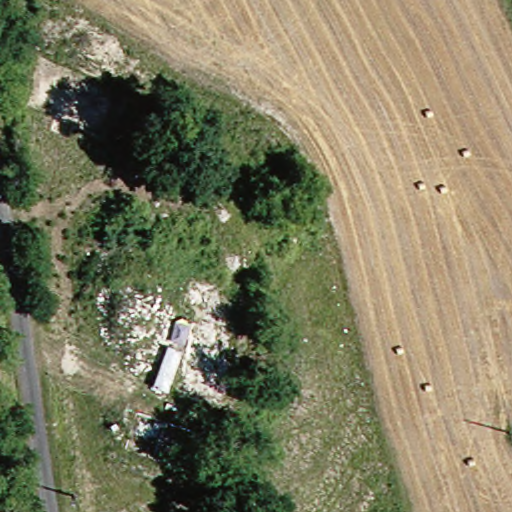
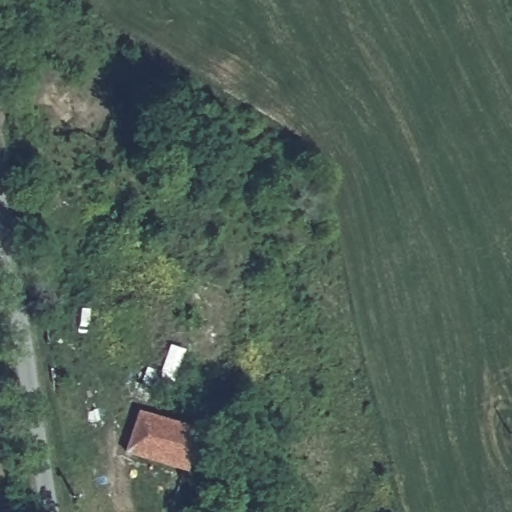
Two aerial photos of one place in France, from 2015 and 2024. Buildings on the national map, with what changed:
new [(137,415),(195,432),(183,471),(126,453),(137,415)]

